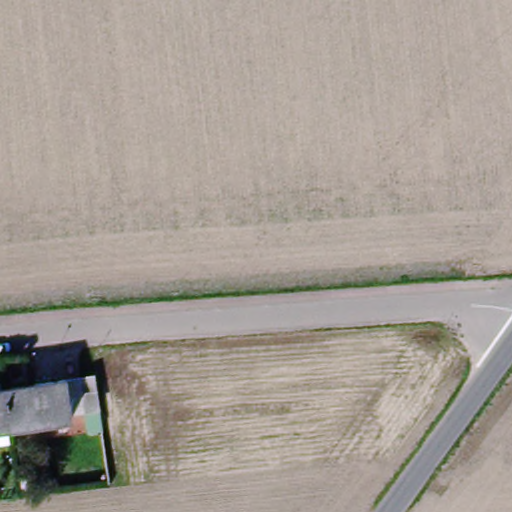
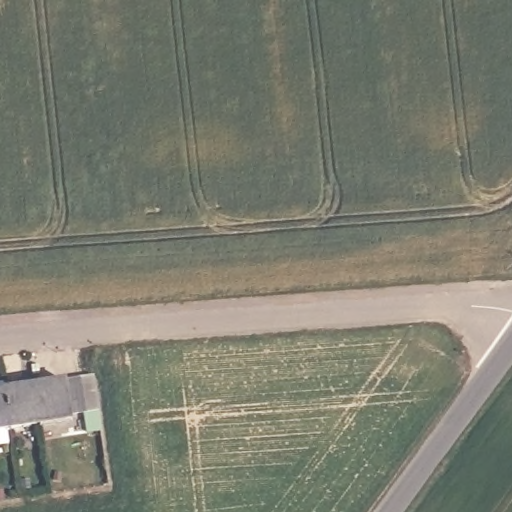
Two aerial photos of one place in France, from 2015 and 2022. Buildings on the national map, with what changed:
unchanged [(81,413),(50,418),(45,382),(82,376),(94,373),(100,407),(87,410),(80,411),(81,413)]
unchanged [(15,388),(45,382),(50,418),(20,423),(15,388)]
unchanged [(20,423),(0,427),(0,391),(15,388),(20,423)]

